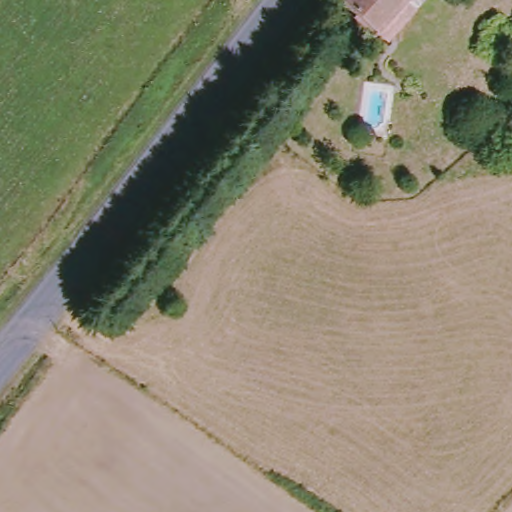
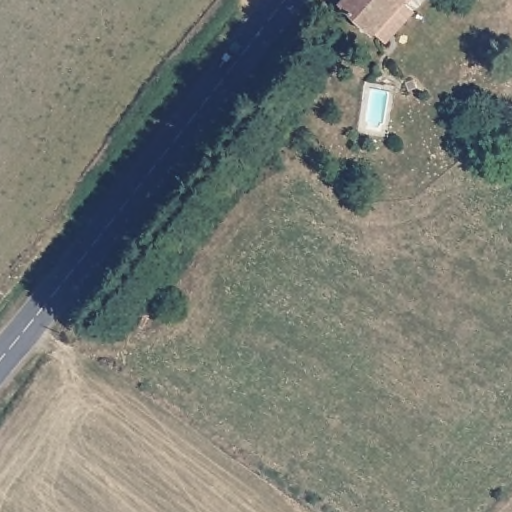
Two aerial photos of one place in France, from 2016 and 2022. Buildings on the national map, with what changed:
unchanged [(379,32),(345,3),(348,0),(407,0),(379,32)]

